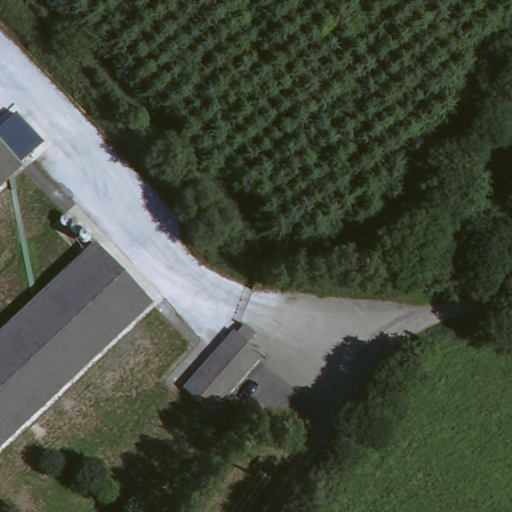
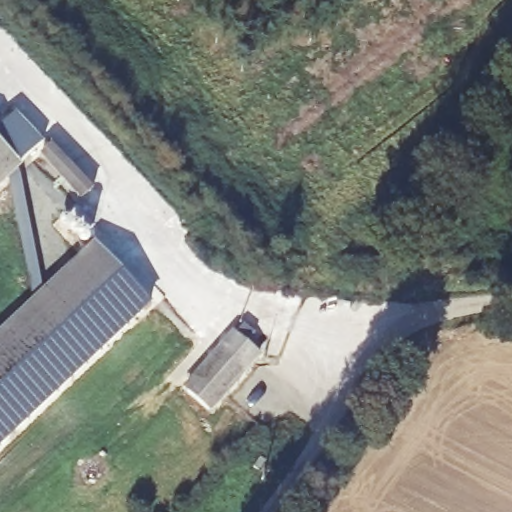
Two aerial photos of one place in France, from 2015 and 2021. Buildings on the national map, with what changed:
unchanged [(0,178),(0,137),(20,159),(0,178)]
unchanged [(0,440),(0,334),(93,243),(145,299),(0,440)]
unchanged [(268,351),(215,407),(195,388),(246,332),(268,351)]

